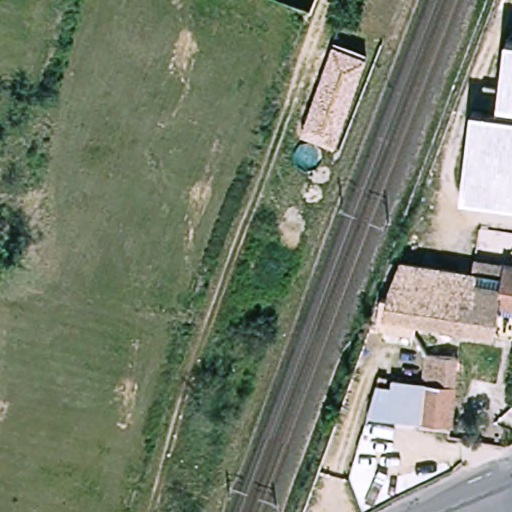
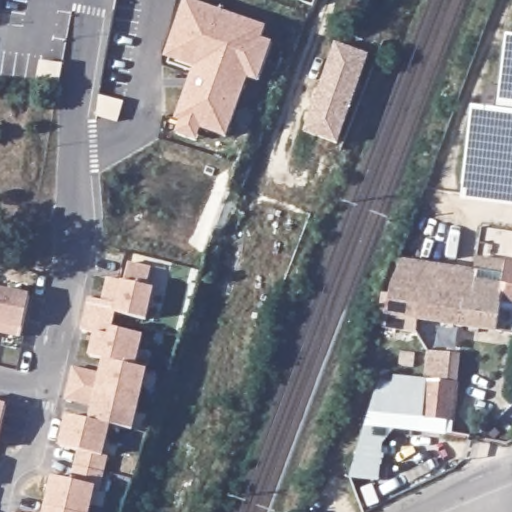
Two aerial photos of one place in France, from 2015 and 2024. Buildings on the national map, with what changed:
new [(194,70),(164,59),(185,0),(187,0),(268,28),(264,40),(274,44),(259,84),(249,80),(227,140),(202,131),(198,144),(176,135),(180,124),(175,121),(194,70)]
unchanged [(460,201),(473,110),(496,112),(506,40),(512,40),(512,208),(460,201)]
unchanged [(335,44),(369,55),(335,145),(303,134),(335,44)]
unchanged [(496,105),(484,103),(487,83),(499,85),(496,105)]
unchanged [(508,313),(506,333),(395,320),(394,297),(405,265),(477,275),(478,262),(512,267),(512,314),(508,313)]
new [(107,279),(123,282),(130,263),(153,268),(148,288),(155,290),(147,322),(117,315),(113,328),(145,338),(138,368),(149,371),(134,432),(112,427),(105,455),(109,457),(106,474),(102,490),(97,490),(91,512),(44,512),(45,508),(52,477),(70,482),(74,467),(79,452),(59,448),(67,415),(89,420),(92,408),(64,401),(72,367),(101,375),(104,361),(89,357),(95,335),(80,330),(88,298),(101,301),(107,279)]
new [(22,331),(20,339),(0,335),(0,289),(30,296),(22,331)]
unchanged [(456,420),(426,416),(373,411),(382,381),(397,382),(397,375),(429,378),(432,350),(463,353),(456,420)]
new [(0,436),(0,404),(8,405),(0,436)]

